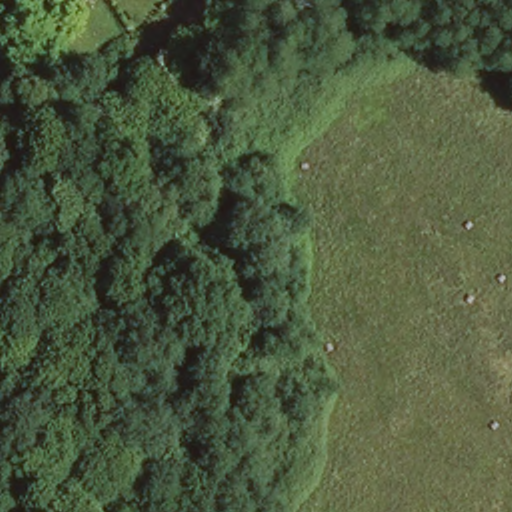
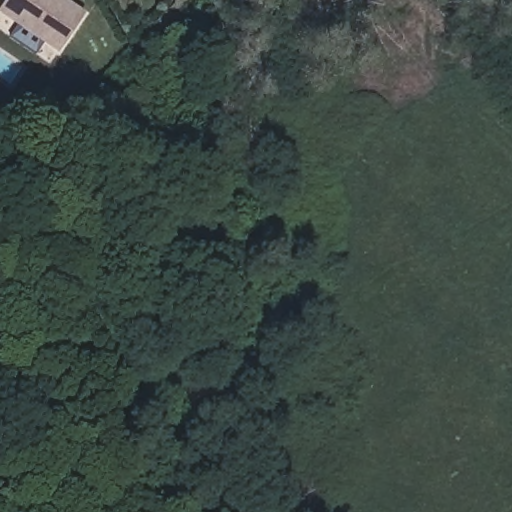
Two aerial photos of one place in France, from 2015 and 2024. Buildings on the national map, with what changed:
new [(4,0),(68,0),(85,11),(58,52),(40,40),(33,51),(11,36),(18,26),(0,14),(0,7),(4,0)]

